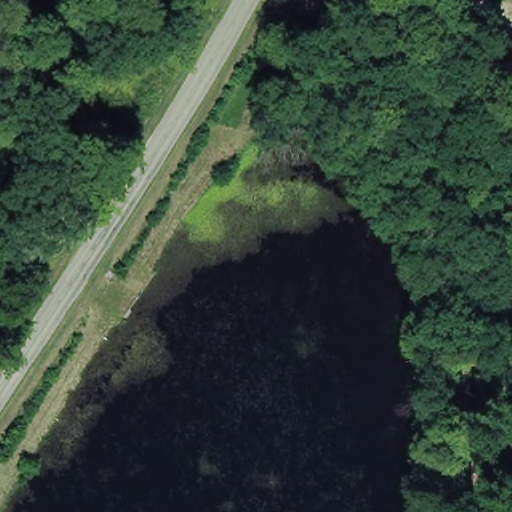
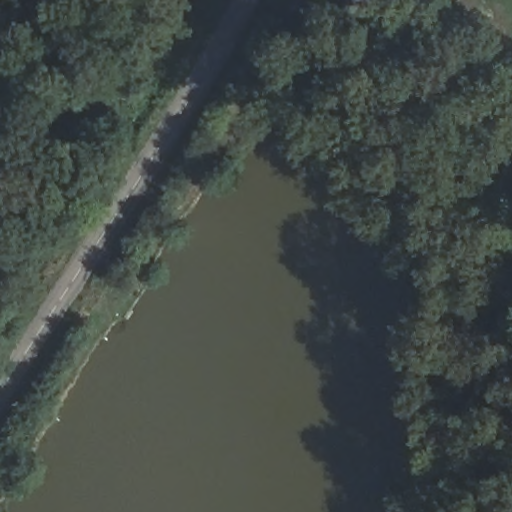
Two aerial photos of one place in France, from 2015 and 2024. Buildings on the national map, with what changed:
unchanged [(437,165),(413,136),(422,128),(447,157),(437,165)]

